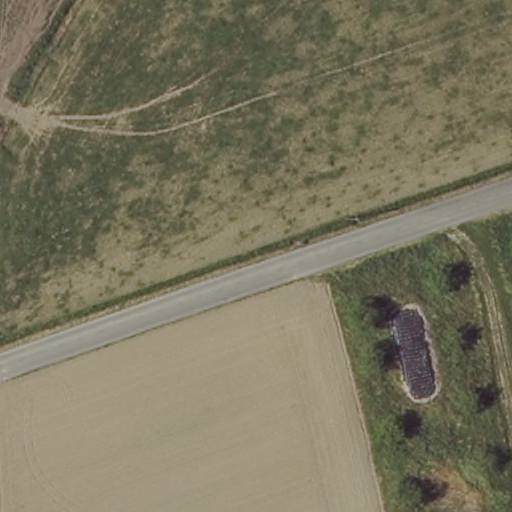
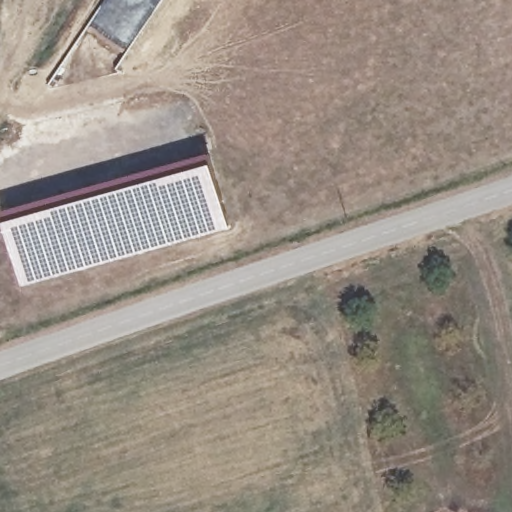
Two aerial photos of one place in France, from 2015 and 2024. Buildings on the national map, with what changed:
new [(23,285),(1,211),(208,152),(229,228),(23,285)]

